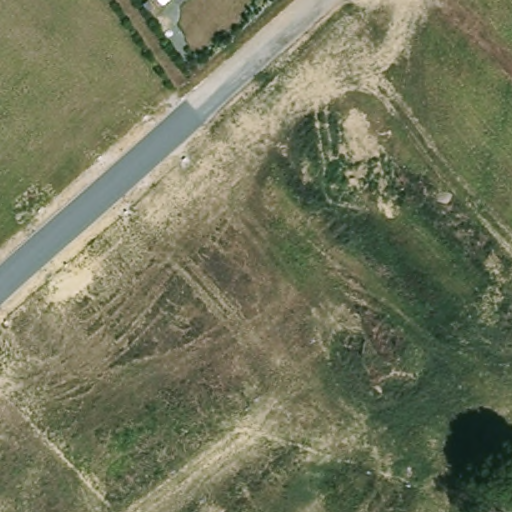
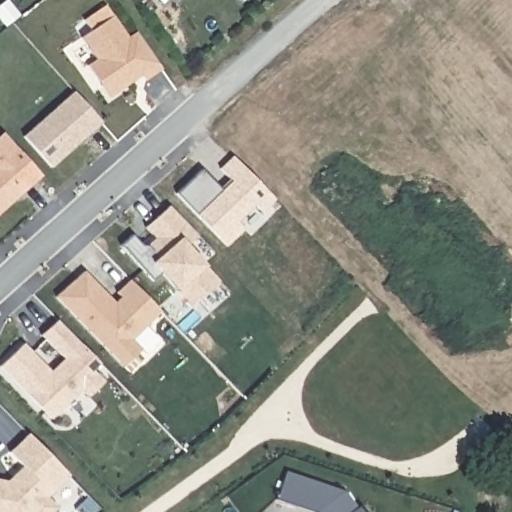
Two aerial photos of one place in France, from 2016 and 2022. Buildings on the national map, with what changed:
new [(112,99),(91,67),(100,61),(85,39),(116,17),(131,39),(139,34),(165,70),(149,81),(145,76),(133,85),(112,99)]
new [(77,92),(105,123),(55,168),(27,137),(77,92)]
new [(5,132),(44,175),(0,215),(0,137),(5,132)]
new [(135,237),(145,247),(150,247),(158,240),(147,229),(171,206),(199,236),(188,247),(222,282),(195,308),(164,276),(155,284),(123,249),(135,237)]
new [(116,304),(122,298),(118,294),(132,281),(162,312),(133,340),(143,351),(125,367),(57,298),(85,272),(116,304)]
new [(26,345),(53,373),(66,360),(43,336),(59,321),(102,365),(94,372),(106,383),(91,398),(84,391),(53,420),(2,368),(26,345)]
new [(10,453),(30,434),(70,476),(48,497),(58,508),(54,512),(0,512),(0,480),(8,482),(14,477),(24,467),(10,453)]

